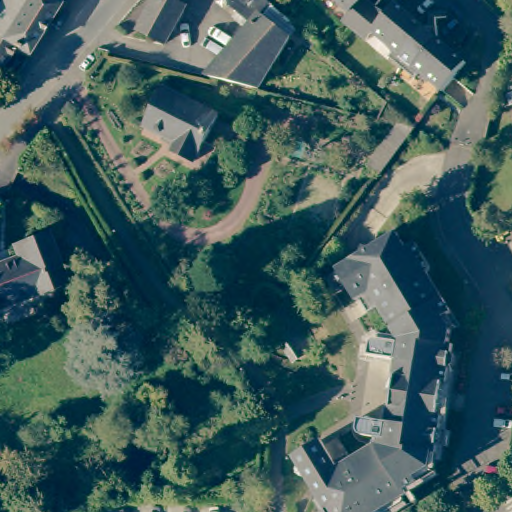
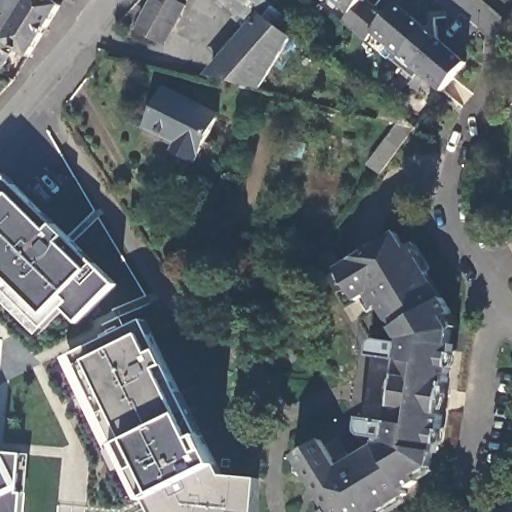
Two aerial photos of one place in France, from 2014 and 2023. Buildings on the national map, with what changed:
unchanged [(2,0),(53,0),(61,5),(28,56),(15,49),(0,69),(0,3),(2,0)]
unchanged [(165,46),(137,31),(154,0),(174,0),(186,6),(165,46)]
unchanged [(257,90),(247,86),(224,81),(204,76),(249,21),(224,0),(265,0),(296,26),(307,36),(300,46),(290,37),(269,71),(280,79),(271,93),(257,90)]
unchanged [(401,0),(427,21),(442,21),(442,36),(470,60),(447,88),(424,69),(419,75),(394,54),(398,47),(377,29),(370,38),(346,17),(352,9),(342,0),(377,0),(390,11),(401,0)]
unchanged [(217,115),(194,163),(171,151),(175,143),(144,126),(164,88),(217,115)]
unchanged [(512,104),(505,106),(501,96),(512,92),(512,104)]
unchanged [(366,164),(396,124),(377,120),(386,103),(414,128),(379,175),(366,164)]
unchanged [(492,120),(501,122),(496,149),(493,156),(485,154),(492,120)]
new [(5,176),(57,226),(69,238),(117,285),(81,324),(67,311),(42,336),(0,295),(0,180),(5,176)]
unchanged [(373,343),(376,340),(380,339),(382,339),(400,342),(401,336),(397,335),(378,306),(366,313),(358,299),(355,301),(336,269),(362,253),(363,245),(371,248),(378,243),(397,233),(407,248),(416,243),(425,255),(419,259),(459,324),(453,327),(450,343),(453,344),(452,351),(447,383),(445,383),(397,375),(395,375),(397,359),(370,355),(371,353),(372,345),(373,343)]
demolished [(66,284),(0,308),(0,264),(17,257),(14,246),(47,234),(66,284)]
unchanged [(260,318),(281,304),(312,349),(291,364),(260,318)]
new [(147,322),(162,352),(169,367),(205,437),(219,466),(226,478),(259,481),(256,512),(153,512),(147,502),(123,471),(114,452),(69,360),(147,322)]
unchanged [(397,375),(445,383),(441,415),(392,407),(397,375)]
unchanged [(387,422),(390,407),(392,407),(441,415),(442,415),(438,446),(437,446),(436,453),(433,452),(431,466),(417,476),(419,482),(407,490),(408,493),(376,512),(322,512),(327,509),(295,456),(321,439),(324,444),(335,462),(349,452),(353,459),(377,444),(377,437),(361,433),(359,429),(360,422),(361,418),(387,422)]
new [(24,512),(0,512),(0,453),(24,456),(32,457),(24,512)]
demolished [(102,497),(102,481),(118,481),(123,484),(123,497),(102,497)]

